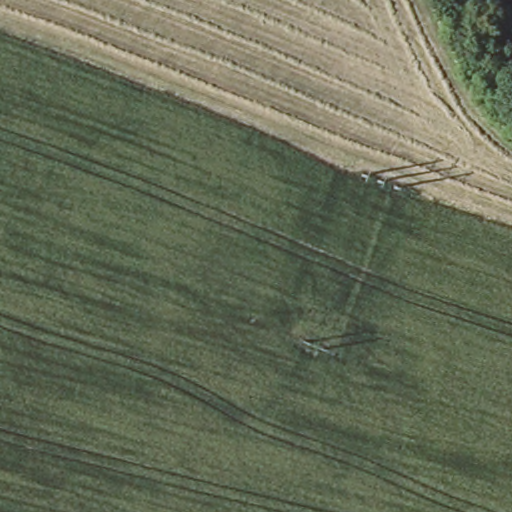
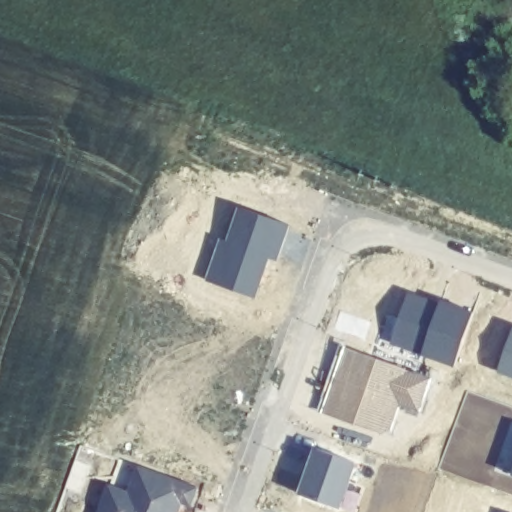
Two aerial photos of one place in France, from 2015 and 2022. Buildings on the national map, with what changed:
new [(289,225),(277,262),(268,257),(254,299),(207,281),(220,239),(227,243),(238,206),(289,225)]
new [(438,303),(440,300),(471,312),(455,366),(391,345),(407,291),(438,303)]
new [(499,371),(512,331),(512,376),(499,371)]
new [(338,390),(345,391),(347,384),(341,382),(353,350),(435,380),(424,411),(405,404),(395,431),(385,434),(330,414),(338,390)]
new [(322,451),(361,465),(345,511),(306,497),(322,451)]
new [(106,483),(127,491),(136,464),(196,486),(190,507),(180,503),(178,512),(97,512),(106,483)]
new [(510,474),(512,471),(512,475),(510,474)]
new [(502,512),(499,512),(499,511),(502,512)]

